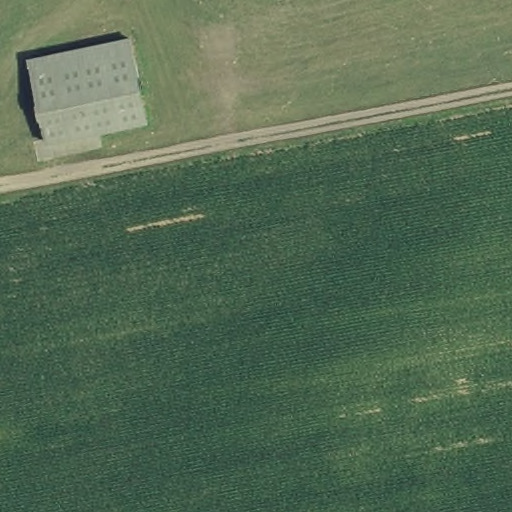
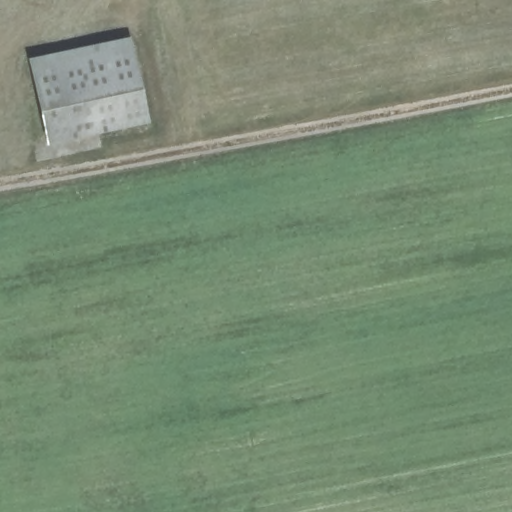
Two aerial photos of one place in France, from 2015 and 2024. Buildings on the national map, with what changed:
unchanged [(131,37),(146,122),(47,140),(32,55),(131,37)]

